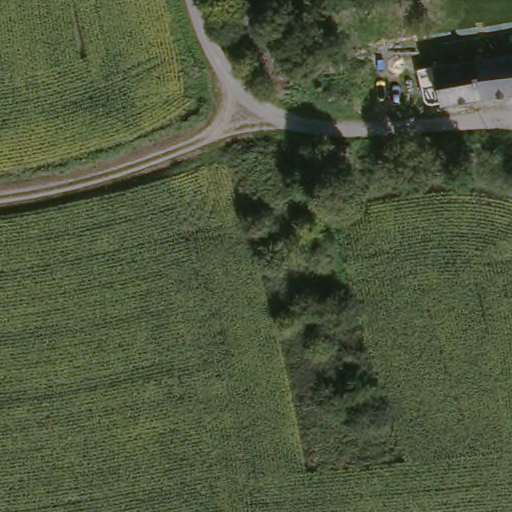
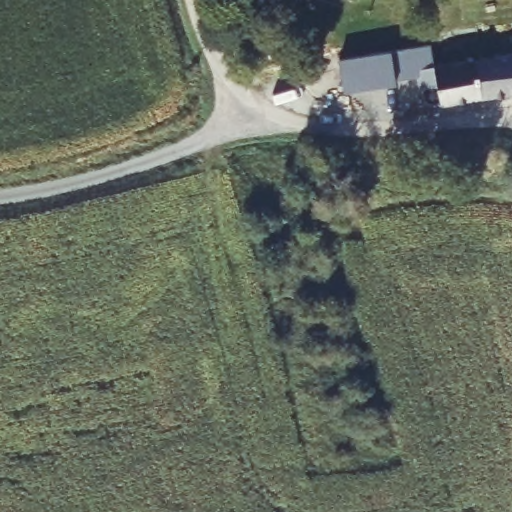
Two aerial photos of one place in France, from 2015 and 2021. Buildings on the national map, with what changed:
new [(432,42),(435,65),(434,65),(417,68),(419,75),(395,79),(391,49),(432,42)]
new [(396,82),(343,91),(338,58),(391,49),(396,82)]
unchanged [(512,53),(512,96),(439,107),(433,65),(512,53)]

